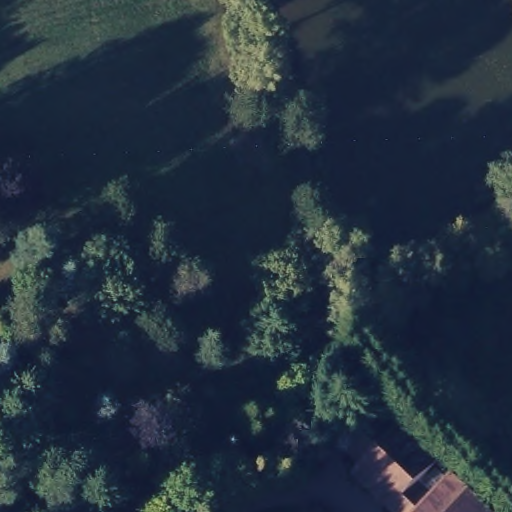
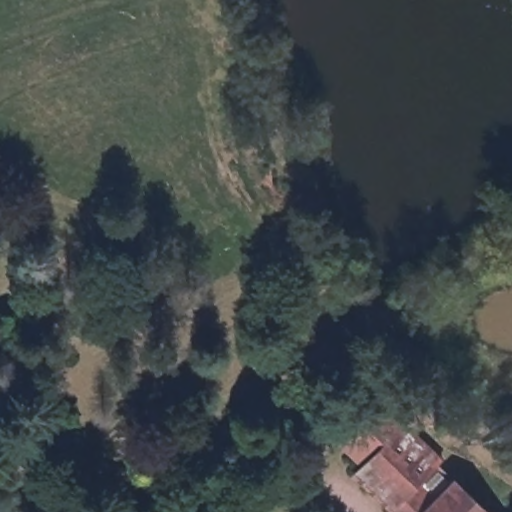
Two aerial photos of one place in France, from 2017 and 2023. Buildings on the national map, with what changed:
unchanged [(409,430),(447,470),(428,490),(442,503),(460,486),(485,512),(384,512),(355,483),(364,475),(352,462),(388,426),(400,439),(409,430)]

